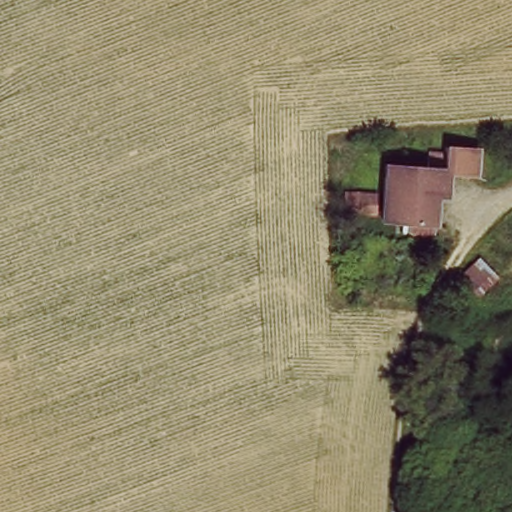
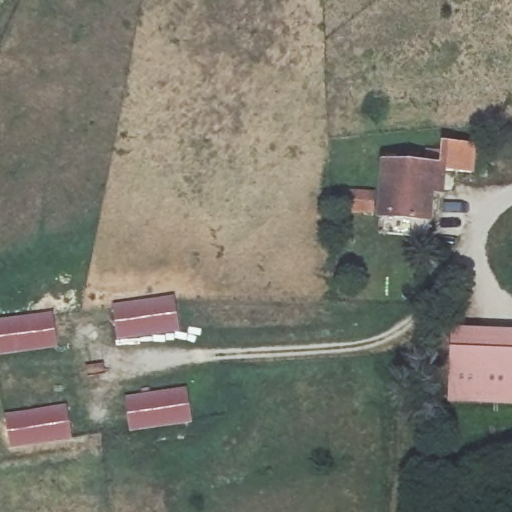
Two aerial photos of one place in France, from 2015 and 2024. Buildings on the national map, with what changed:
unchanged [(431,165),(430,154),(451,154),(452,147),(480,149),(481,179),(444,181),(444,227),(389,227),(387,166),(431,165)]
unchanged [(381,198),(381,217),(350,217),(349,199),(381,198)]
new [(174,299),(178,333),(117,341),(112,306),(174,299)]
new [(52,315),(57,350),(0,357),(0,321),(52,315)]
new [(452,330),(512,334),(512,405),(447,402),(452,330)]
new [(185,391),(189,427),(129,435),(125,400),(185,391)]
new [(67,407),(72,441),(10,450),(5,416),(67,407)]

